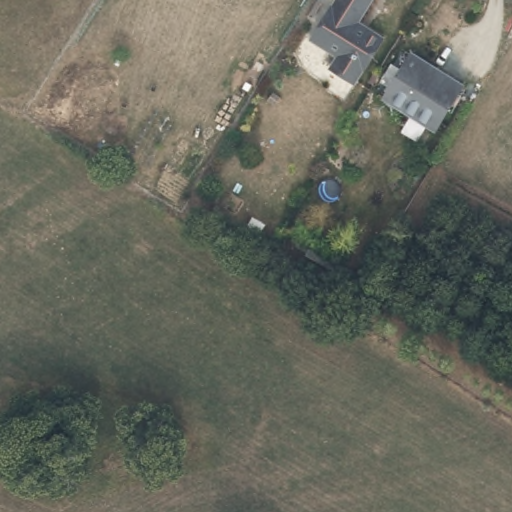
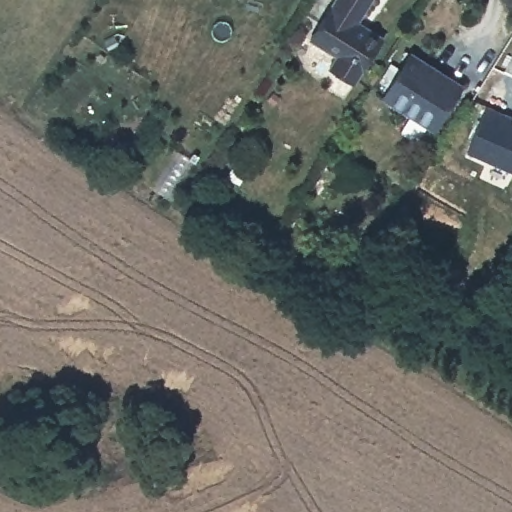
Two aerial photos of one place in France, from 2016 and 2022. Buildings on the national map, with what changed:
unchanged [(367,24),(382,35),(352,81),(327,65),(334,53),(308,36),(332,0),(370,0),(358,19),(358,25),(367,24)]
unchanged [(438,124),(423,125),(382,99),(410,57),(460,90),(438,124)]
new [(468,152),(488,106),(512,116),(510,121),(512,122),(512,171),(468,152)]

